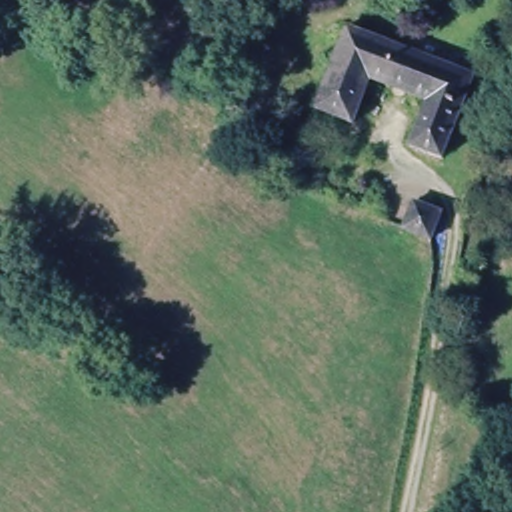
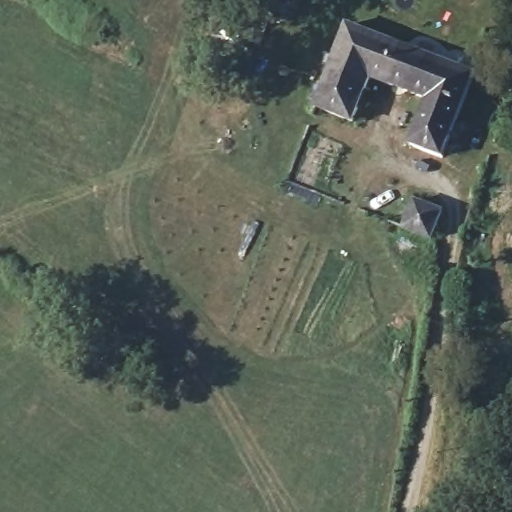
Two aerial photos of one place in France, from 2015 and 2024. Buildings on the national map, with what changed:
unchanged [(444,158),(415,149),(427,105),(367,87),(353,127),(314,114),(346,27),(474,70),(444,158)]
unchanged [(403,231),(412,204),(439,211),(434,237),(403,231)]

